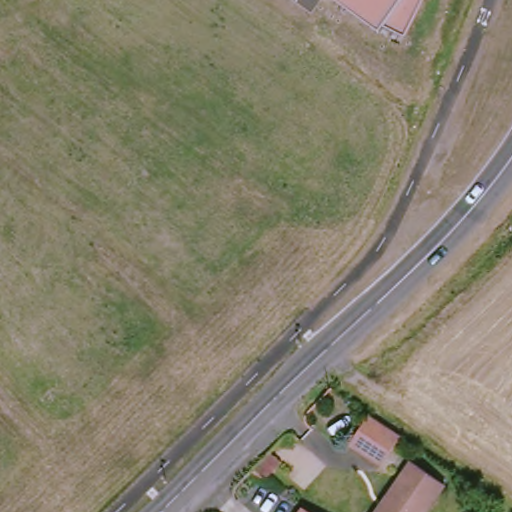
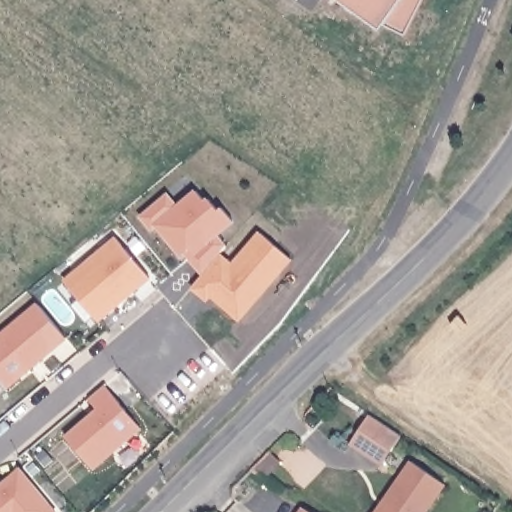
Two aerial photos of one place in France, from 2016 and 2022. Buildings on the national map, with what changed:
unchanged [(384,24),(379,30),(335,0),(421,0),(404,35),(384,24)]
new [(190,248),(182,255),(157,226),(164,220),(154,208),(168,196),(177,207),(197,191),(206,202),(210,200),(219,211),(222,208),(234,222),(217,236),(227,247),(203,274),(190,257),(185,252),(190,248)]
new [(164,220),(152,230),(142,217),(154,208),(164,220)]
new [(232,266),(261,233),(292,260),(240,320),(220,302),(221,300),(212,293),(207,300),(192,287),(220,255),(232,266)]
new [(94,309),(85,296),(80,300),(65,282),(117,238),(150,278),(98,321),(93,316),(94,309)]
new [(67,338),(8,387),(0,378),(0,335),(37,304),(67,338)]
new [(97,409),(90,400),(106,387),(141,428),(94,469),(66,437),(97,409)]
unchanged [(375,460),(356,448),(376,418),(407,440),(400,450),(387,469),(375,460)]
unchanged [(389,500),(386,498),(412,460),(446,484),(425,512),(380,512),(389,500)]
new [(0,495),(1,494),(0,493),(0,489),(8,482),(7,481),(20,470),(55,512),(0,512),(0,495)]
unchanged [(308,507),(314,512),(305,512),(308,507)]

